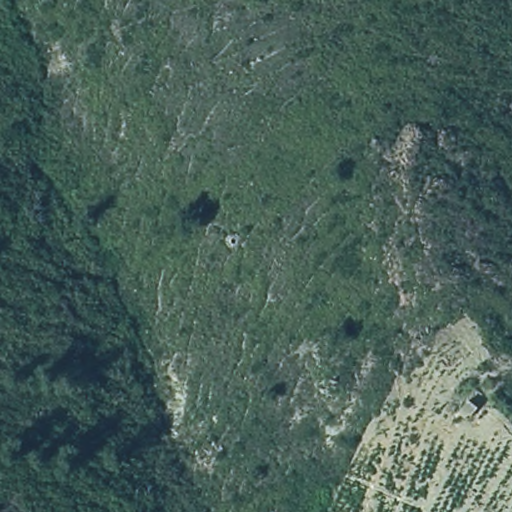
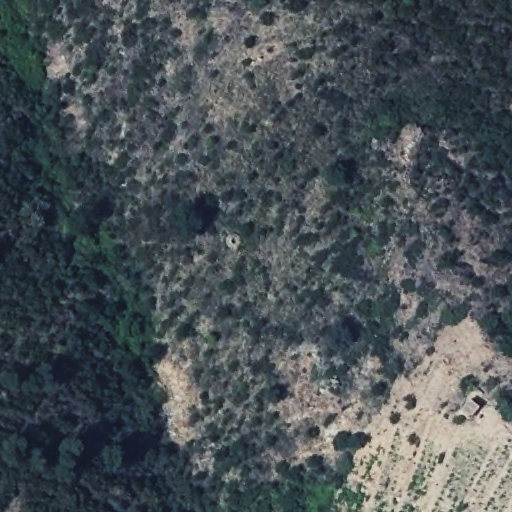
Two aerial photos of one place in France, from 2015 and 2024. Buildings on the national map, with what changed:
unchanged [(479,408),(460,423),(451,412),(470,395),(479,408)]

